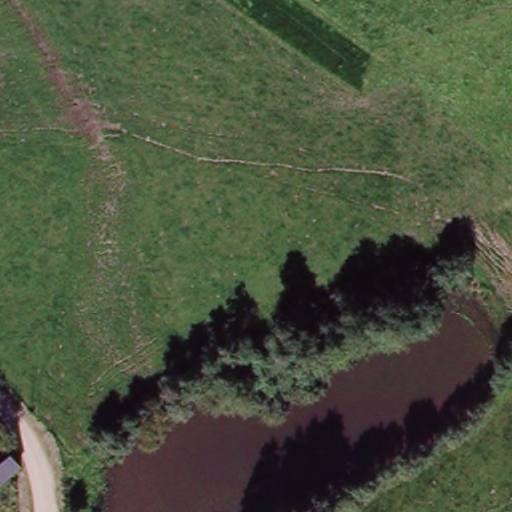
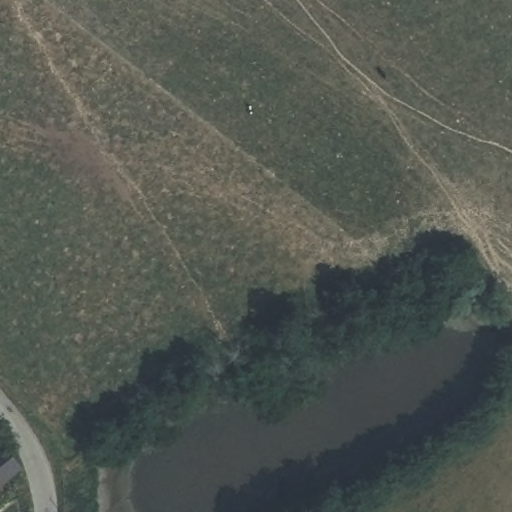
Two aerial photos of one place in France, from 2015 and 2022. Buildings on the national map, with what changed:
unchanged [(5,446),(23,468),(0,487),(0,450),(5,446)]

